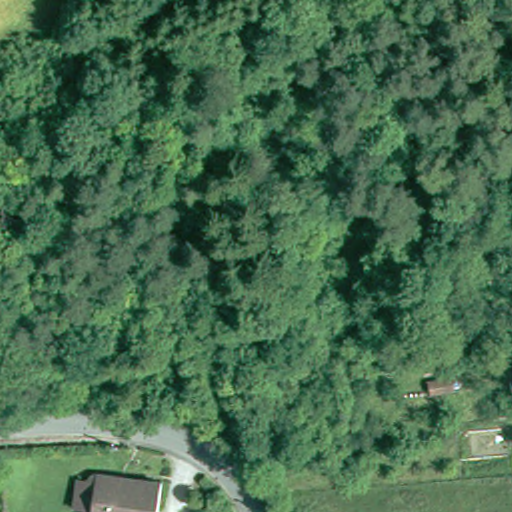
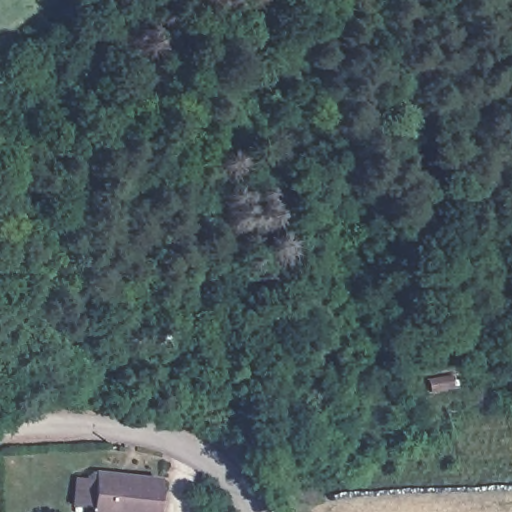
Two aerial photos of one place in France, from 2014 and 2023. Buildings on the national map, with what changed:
unchanged [(108,487),(108,486),(137,488),(138,482),(173,486),(171,512),(89,512),(91,485),(108,487)]

